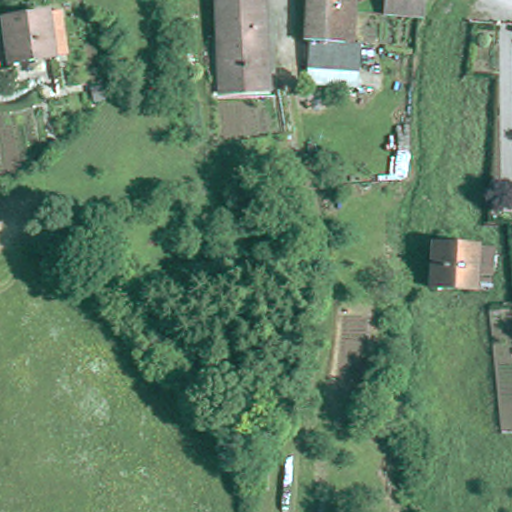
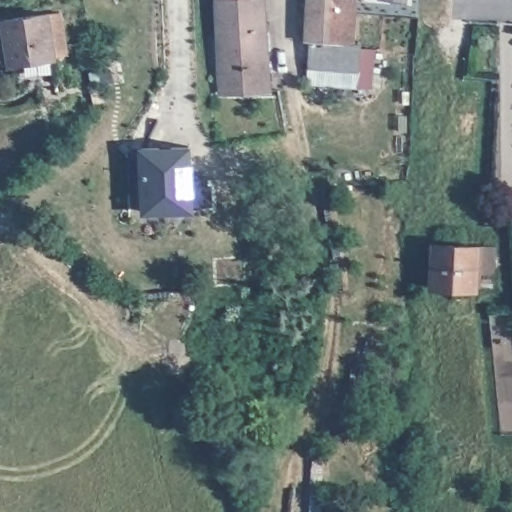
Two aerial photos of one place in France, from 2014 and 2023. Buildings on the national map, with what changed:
unchanged [(275,86),(225,91),(222,0),(267,0),(275,86)]
unchanged [(310,42),(307,42),(307,35),(309,0),(355,0),(355,14),(353,45),(310,42)]
demolished [(412,18),(384,16),(385,0),(425,0),(423,19),(412,18)]
unchanged [(10,65),(3,19),(48,13),(54,58),(10,65)]
unchanged [(358,71),(308,67),(310,42),(353,45),(360,45),(358,71)]
new [(192,144),(193,211),(140,214),(138,146),(192,144)]
unchanged [(480,287),(465,286),(422,283),(424,239),(467,241),(482,242),(480,287)]

